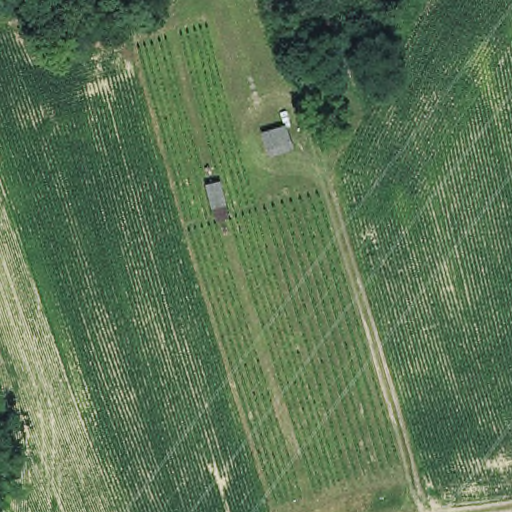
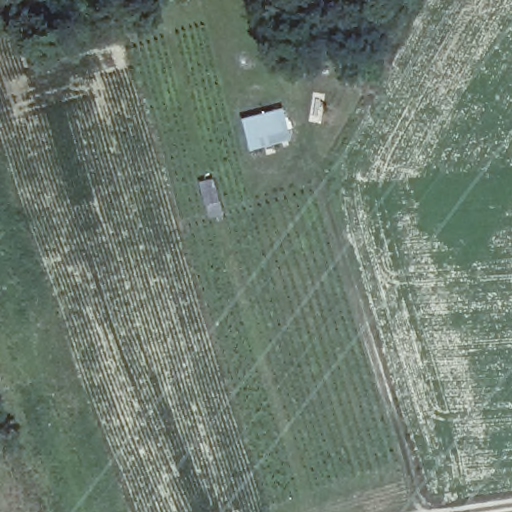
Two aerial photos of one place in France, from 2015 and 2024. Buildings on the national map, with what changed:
unchanged [(284,119),(288,145),(257,153),(254,126),(284,119)]
unchanged [(207,211),(201,177),(218,174),(226,207),(207,211)]

